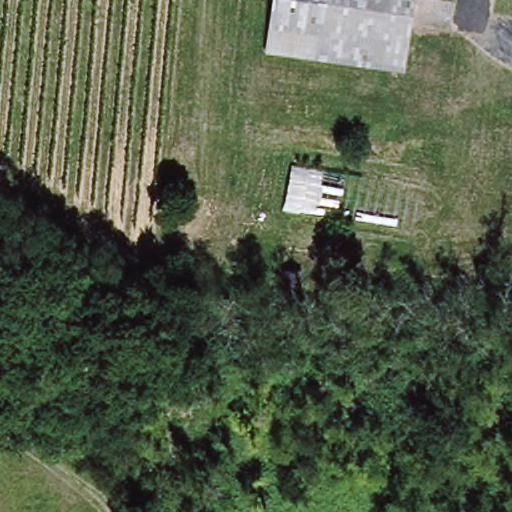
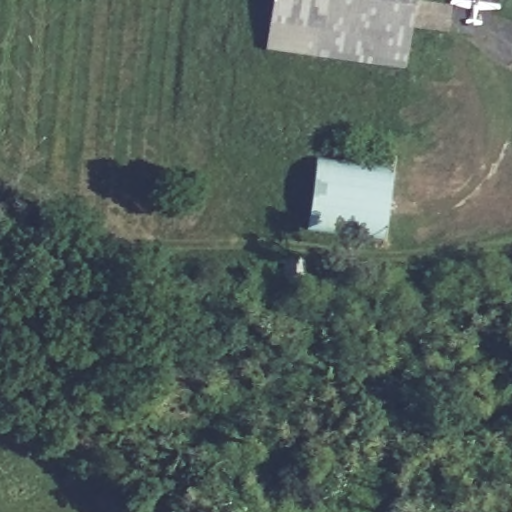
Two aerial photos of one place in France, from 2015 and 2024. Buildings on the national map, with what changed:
unchanged [(412,68),(265,48),(272,0),(421,0),(412,68)]
new [(381,247),(305,235),(315,156),(393,166),(381,247)]
unchanged [(301,285),(281,285),(284,264),(301,264),(301,285)]

